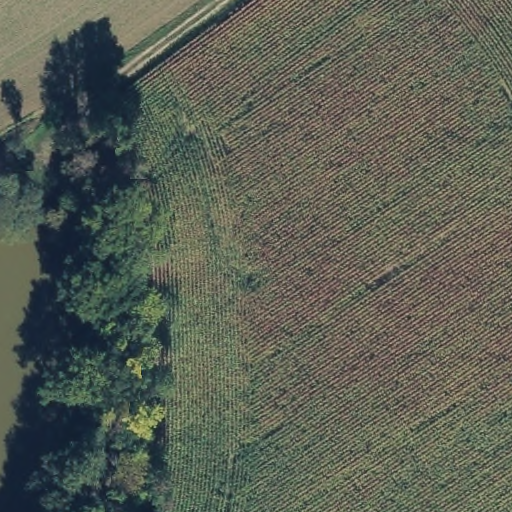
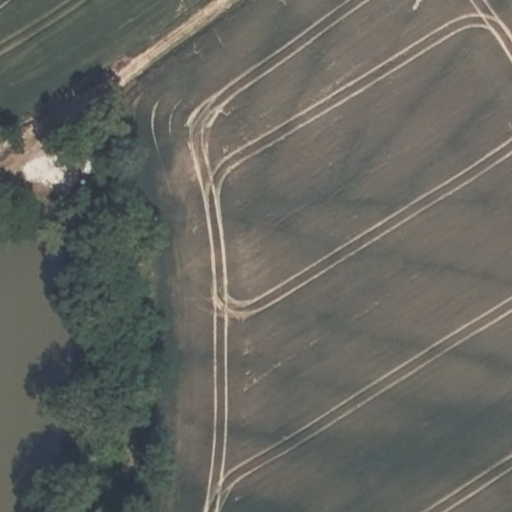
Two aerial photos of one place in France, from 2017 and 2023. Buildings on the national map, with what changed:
unchanged [(90,142),(91,164),(92,170),(92,187),(74,189),(74,143),(90,142)]
unchanged [(98,166),(109,153),(124,172),(110,185),(98,173),(95,170),(98,166)]

